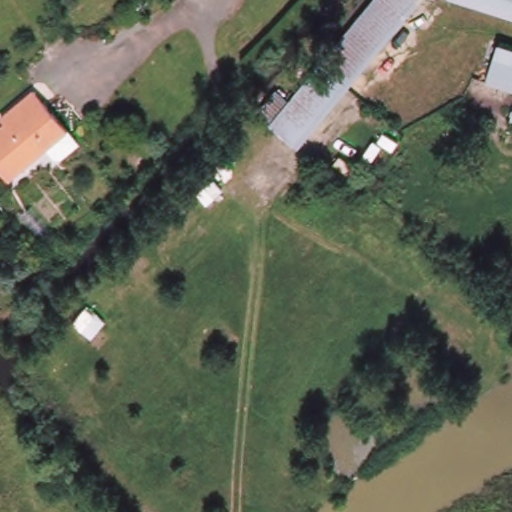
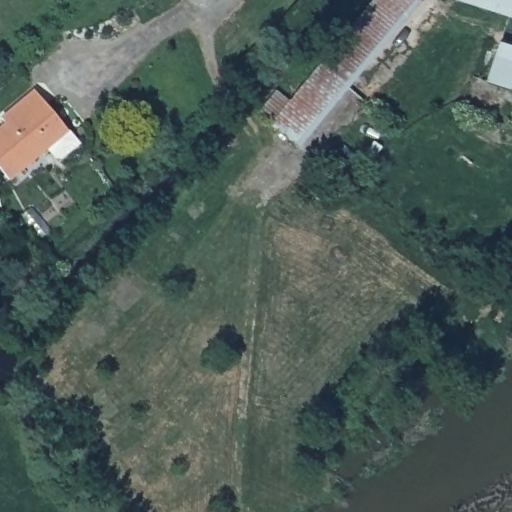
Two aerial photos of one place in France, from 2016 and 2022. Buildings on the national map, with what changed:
unchanged [(382,0),(430,0),(360,74),(335,50),(382,0)]
unchanged [(458,0),(512,0),(512,18),(458,0)]
unchanged [(484,82),(495,43),(512,48),(512,91),(484,82)]
unchanged [(287,151),(261,126),(335,50),(360,74),(287,151)]
unchanged [(63,157),(57,156),(49,146),(10,179),(0,168),(0,129),(8,123),(3,118),(38,90),(70,129),(81,142),(63,157)]

